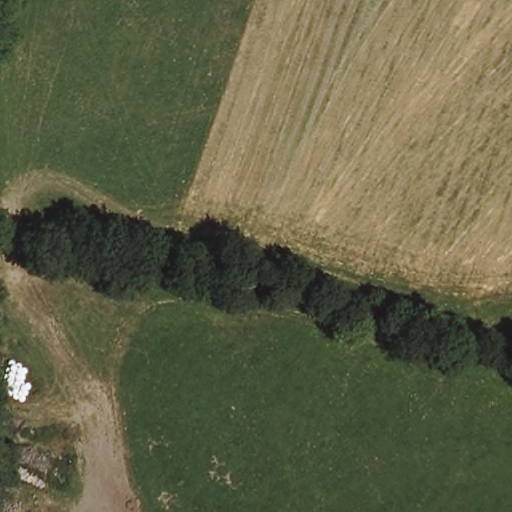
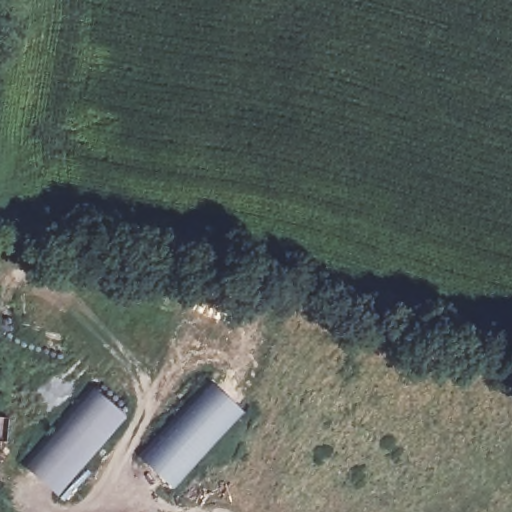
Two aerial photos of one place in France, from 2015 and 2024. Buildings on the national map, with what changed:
new [(140,455),(212,380),(247,412),(175,489),(140,455)]
new [(25,465),(89,385),(123,415),(56,493),(25,465)]

